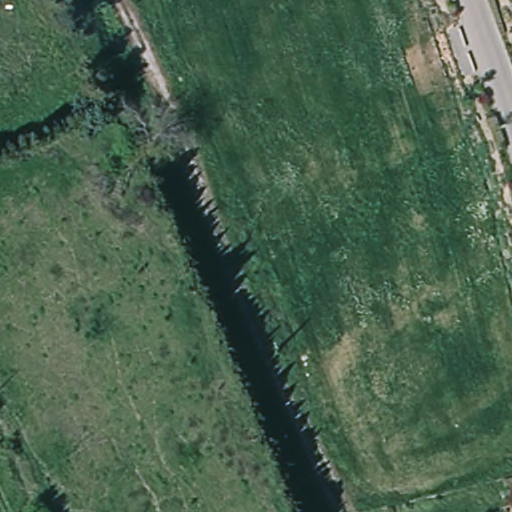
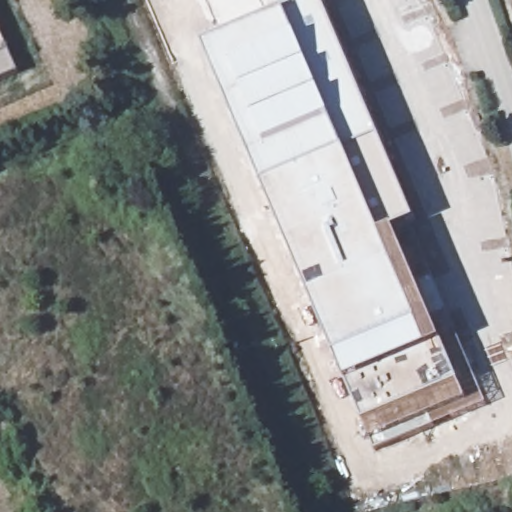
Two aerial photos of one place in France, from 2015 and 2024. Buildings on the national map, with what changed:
new [(283,6),(297,0),(321,0),(323,4),(417,224),(413,226),(487,406),(379,453),(373,443),(365,424),(349,386),(207,48),(287,14),(283,6)]
new [(0,82),(0,32),(20,74),(0,82)]

